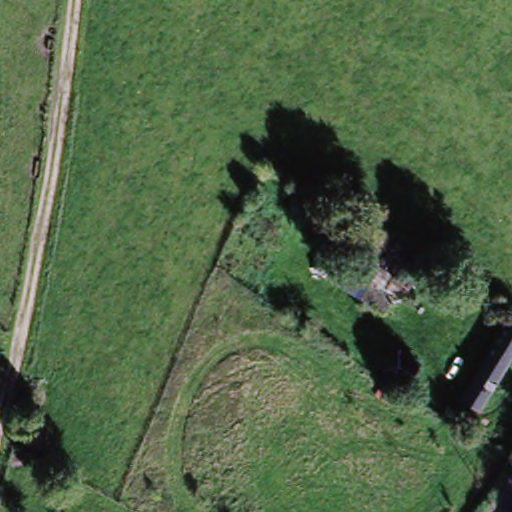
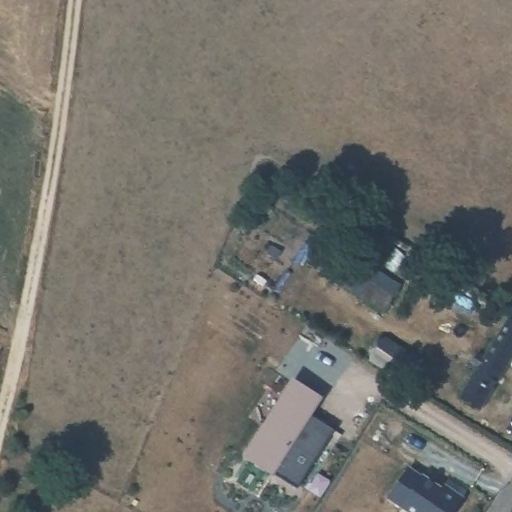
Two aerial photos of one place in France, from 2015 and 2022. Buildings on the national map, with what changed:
unchanged [(369,286),(392,303),(383,318),(359,302),(369,286)]
unchanged [(512,328),(512,361),(481,413),(461,402),(509,325),(512,328)]
unchanged [(398,350),(436,376),(424,393),(386,368),(398,350)]
new [(297,490),(248,459),(268,429),(270,430),(298,386),(321,400),(311,416),(334,432),(297,490)]
new [(407,512),(388,498),(408,469),(421,478),(422,477),(441,490),(443,486),(462,500),(453,512),(407,512)]

